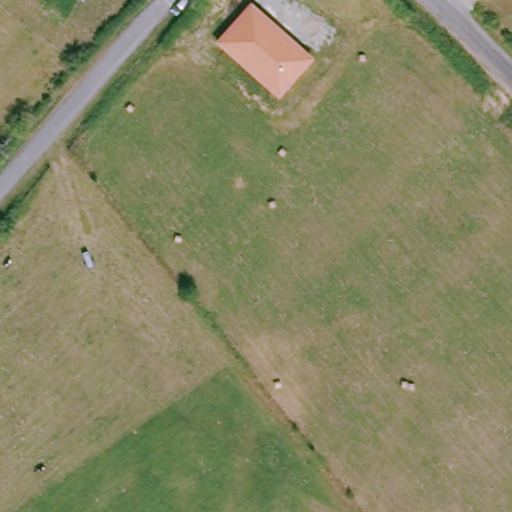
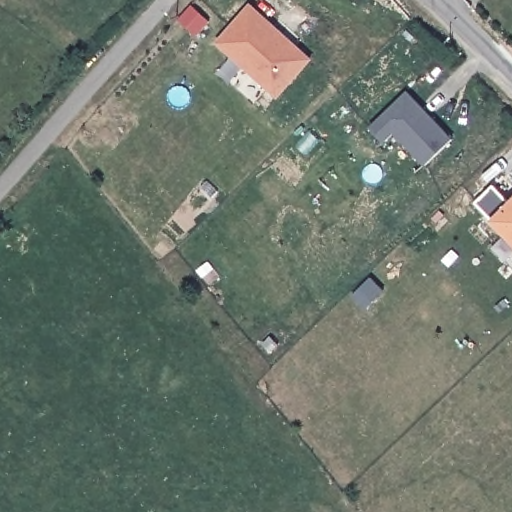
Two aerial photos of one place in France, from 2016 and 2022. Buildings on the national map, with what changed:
unchanged [(250,2),(315,55),(279,97),(215,42),(250,2)]
new [(395,133),(385,141),(371,126),(408,91),(454,138),(426,164),(395,133)]
new [(493,220),(512,201),(512,239),(493,220)]

